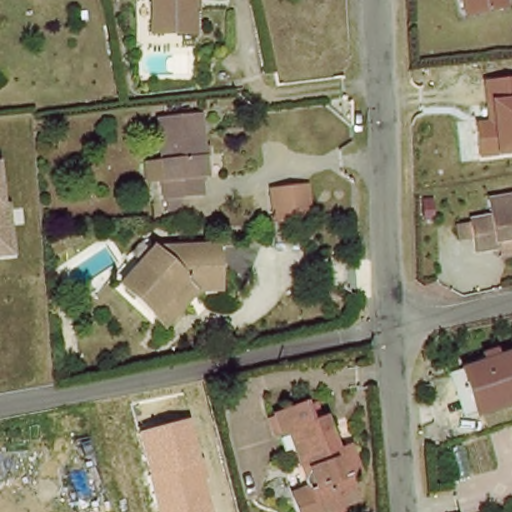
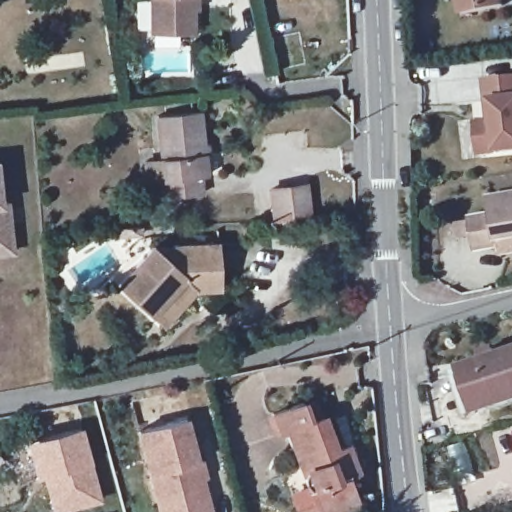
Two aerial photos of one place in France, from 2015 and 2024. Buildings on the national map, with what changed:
unchanged [(194,0),(194,31),(153,31),(153,0),(194,0)]
unchanged [(465,14),(462,0),(503,0),(504,5),(465,14)]
unchanged [(475,158),(470,121),(486,119),(480,80),(512,76),(512,154),(475,158)]
unchanged [(150,159),(163,158),(158,111),(200,106),(207,171),(202,172),(203,189),(165,194),(163,175),(152,176),(150,159)]
unchanged [(11,201),(17,255),(0,257),(0,170),(5,203),(11,201)]
unchanged [(310,217),(290,219),(276,221),(272,189),(289,188),(307,185),(310,217)]
unchanged [(498,247),(477,251),(471,219),(492,215),(490,199),(512,195),(512,254),(500,257),(498,247)]
unchanged [(168,322),(152,307),(120,278),(152,242),(217,239),(219,283),(196,284),(197,288),(168,322)]
unchanged [(462,369),(485,361),(483,353),(495,349),(498,357),(512,352),(512,401),(477,413),(462,369)]
unchanged [(347,448),(357,473),(348,476),(357,499),(322,512),(300,512),(293,495),(310,489),(309,487),(307,486),(307,484),(306,482),(305,479),(305,477),(307,474),(308,473),(309,470),(310,468),(295,429),(282,434),(275,414),(305,403),(307,408),(320,402),(325,418),(338,451),(347,448)]
unchanged [(190,418),(200,461),(205,459),(210,479),(205,481),(213,512),(160,512),(139,432),(190,418)]
new [(55,511),(45,474),(38,476),(28,441),(79,428),(87,461),(100,499),(55,511)]

